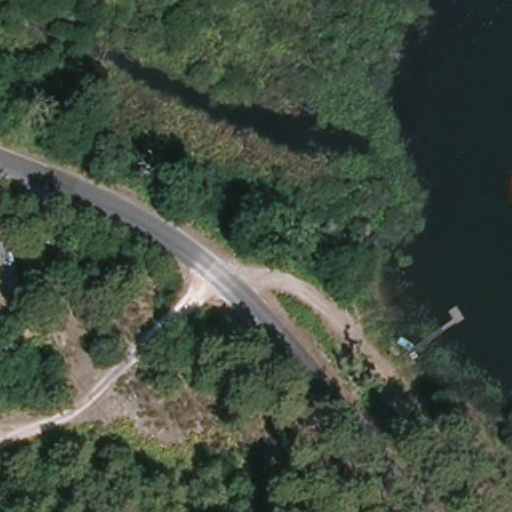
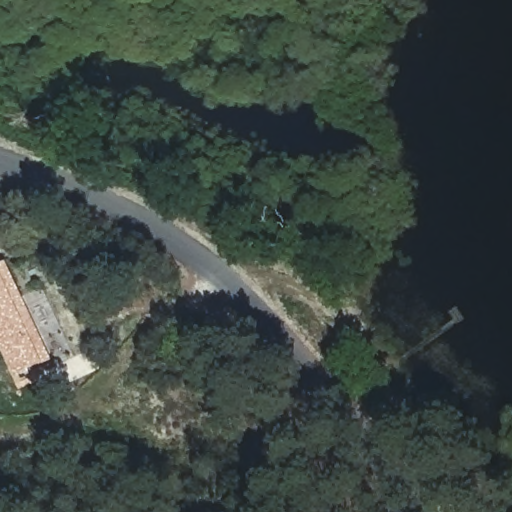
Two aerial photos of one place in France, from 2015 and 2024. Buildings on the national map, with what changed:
demolished [(0,297),(0,235),(5,234),(17,292),(0,297)]
new [(51,360),(16,374),(0,340),(0,268),(7,264),(51,360)]
demolished [(80,352),(61,353),(57,303),(75,301),(80,352)]

